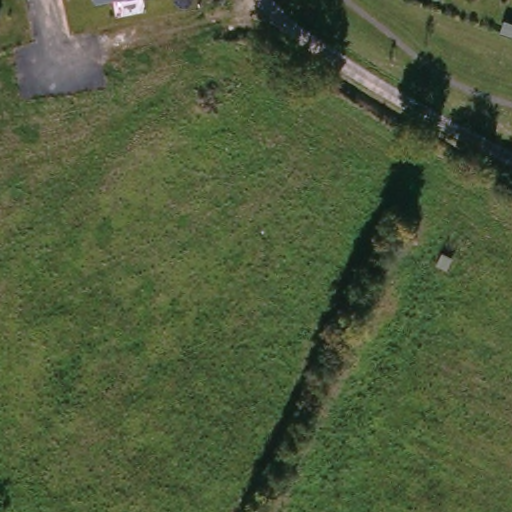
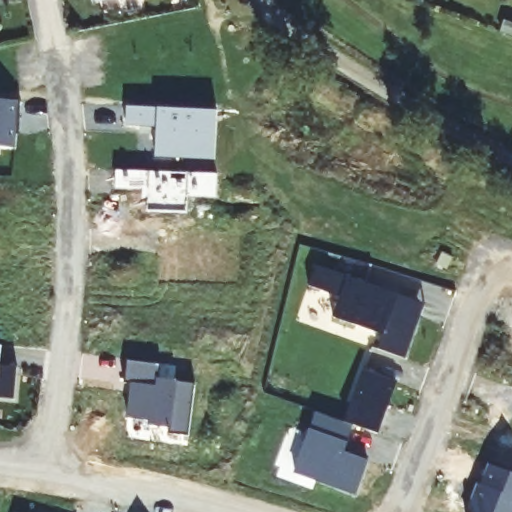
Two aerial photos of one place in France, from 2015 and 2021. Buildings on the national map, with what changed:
unchanged [(95,0),(101,0),(95,1),(95,0)]
new [(15,149),(0,148),(0,101),(21,102),(20,119),(20,136),(15,136),(15,149)]
new [(126,107),(217,111),(215,160),(156,157),(157,127),(126,126),(126,107)]
new [(146,189),(115,189),(115,172),(213,175),(212,197),(184,196),(182,213),(145,212),(145,204),(141,205),(141,190),(146,189)]
new [(398,295),(425,305),(420,319),(405,360),(377,350),(382,335),(333,318),(340,298),(309,287),(316,266),(398,295)]
new [(0,366),(0,346),(2,346),(0,366)]
new [(127,360),(162,364),(160,379),(196,384),(190,437),(169,435),(170,429),(150,426),(150,422),(129,419),(133,385),(124,383),(127,360)]
new [(16,400),(0,398),(0,366),(18,368),(16,400)]
new [(363,371),(396,383),(377,435),(353,426),(345,423),(363,371)]
new [(345,423),(353,426),(346,445),(344,453),(367,462),(355,495),(295,473),(316,413),(345,423)]
new [(471,503),(478,484),(481,486),(490,465),(512,474),(512,512),(473,512),(476,505),(471,503)]

